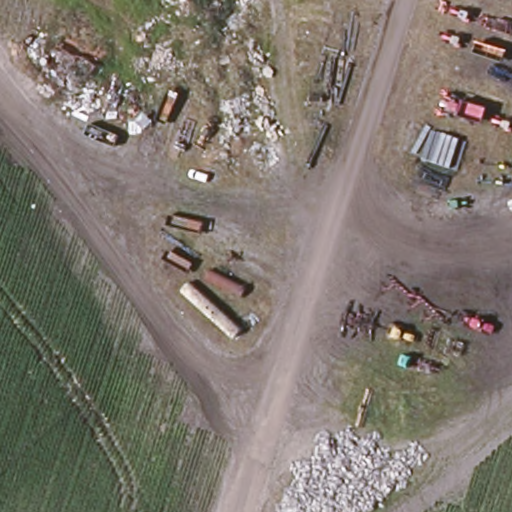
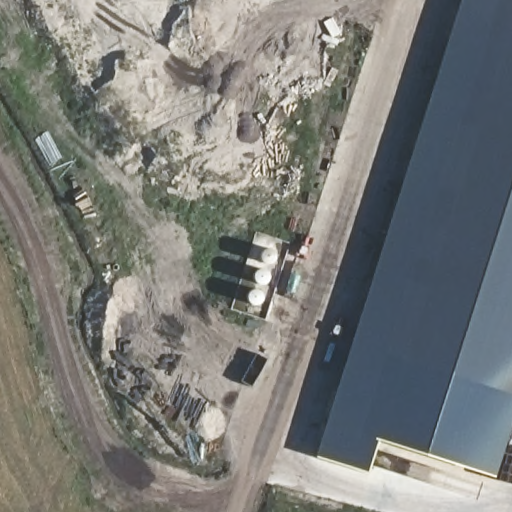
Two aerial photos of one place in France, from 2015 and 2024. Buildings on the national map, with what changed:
new [(377,440),(367,472),(316,456),(461,0),(496,0),(447,154),(383,357),(512,397),(512,423),(495,478),(377,440)]
new [(496,0),(512,0),(512,397),(383,357),(496,0)]

